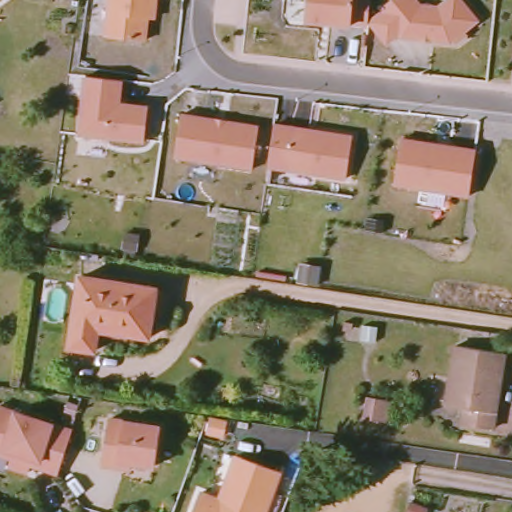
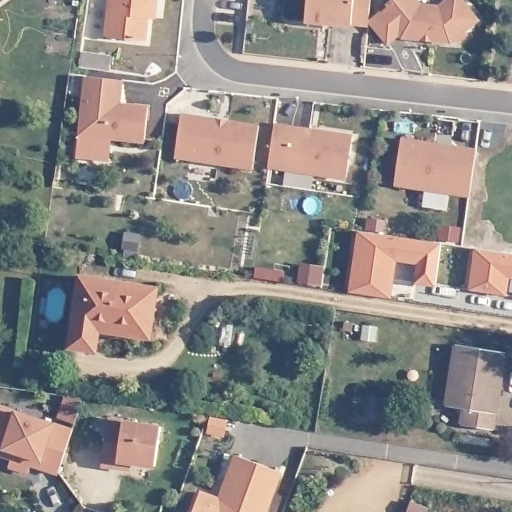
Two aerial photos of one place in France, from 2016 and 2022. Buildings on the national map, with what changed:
unchanged [(146,11),(142,42),(105,39),(109,0),(154,0),(153,11),(146,11)]
unchanged [(307,23),(309,0),(371,0),(367,28),(352,29),(307,23)]
unchanged [(470,38),(460,46),(456,42),(404,40),(400,36),(388,44),(371,24),(389,9),(386,5),(394,0),(418,0),(425,7),(440,7),(450,0),(464,0),(482,21),(467,34),(470,38)]
unchanged [(146,144),(80,136),(86,79),(125,84),(123,103),(151,107),(146,144)]
unchanged [(253,171),(176,161),(183,116),(260,126),(253,171)]
unchanged [(348,181),(270,171),(276,125),(355,135),(348,181)]
unchanged [(471,197),(397,189),(403,139),(478,150),(471,197)]
new [(415,283),(417,264),(396,261),(393,280),(352,273),(357,231),(441,244),(434,286),(415,283)]
new [(506,295),(470,290),(474,248),(512,254),(512,280),(508,280),(506,295)]
unchanged [(82,280),(158,288),(152,337),(103,332),(100,353),(73,350),(81,281),(82,280)]
unchanged [(505,353),(492,427),(463,422),(466,408),(450,404),(459,346),(505,353)]
unchanged [(370,401),(392,405),(388,423),(380,423),(366,420),(370,401)]
unchanged [(30,466),(28,472),(8,465),(10,459),(0,455),(0,405),(72,431),(60,468),(57,476),(30,466)]
unchanged [(115,421),(146,426),(160,428),(155,467),(131,464),(118,462),(117,468),(101,466),(103,455),(108,420),(115,421)]
unchanged [(284,475),(269,512),(197,512),(203,494),(223,502),(240,458),(284,475)]

